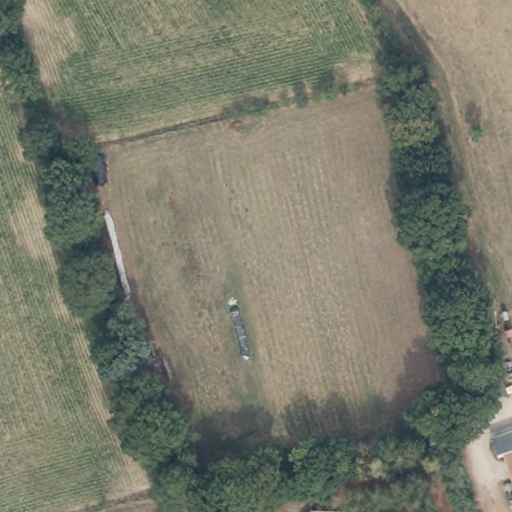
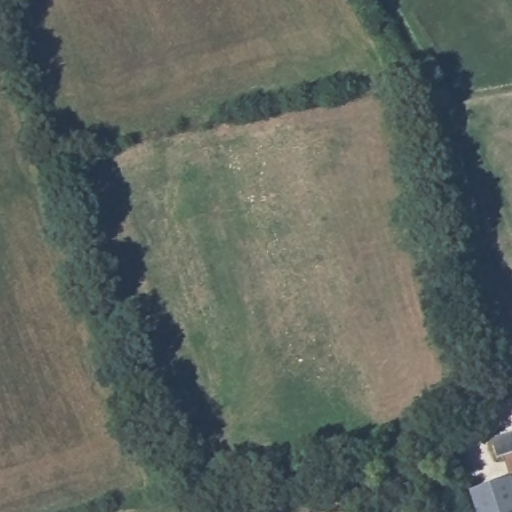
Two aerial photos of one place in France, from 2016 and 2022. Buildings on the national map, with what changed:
new [(512,449),(503,452),(505,455),(497,457),(491,439),(512,432),(512,449)]
unchanged [(512,449),(512,481),(503,452),(512,449)]
new [(511,476),(512,480),(512,512),(476,512),(469,489),(511,476)]

